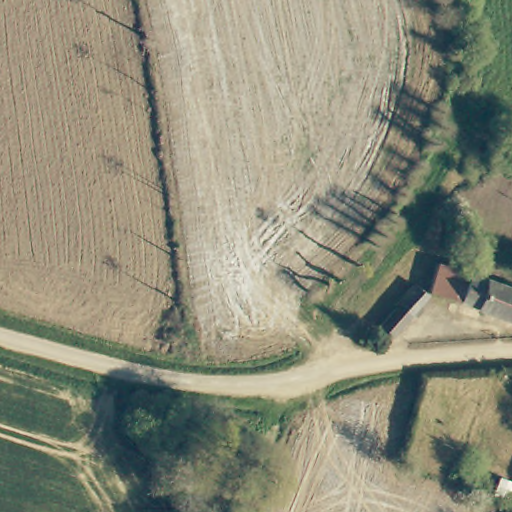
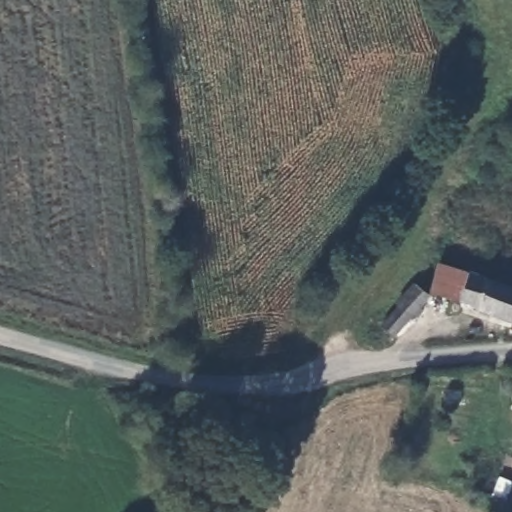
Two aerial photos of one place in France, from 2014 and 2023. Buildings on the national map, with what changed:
unchanged [(458,308),(429,300),(436,276),(441,272),(469,280),(512,293),(512,324),(458,308)]
unchanged [(390,326),(416,294),(427,305),(398,336),(390,326)]

